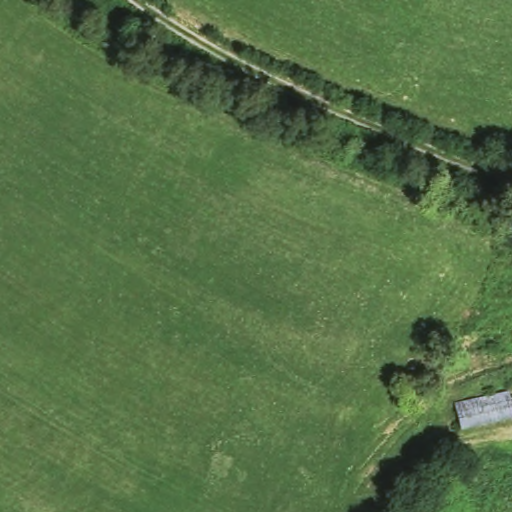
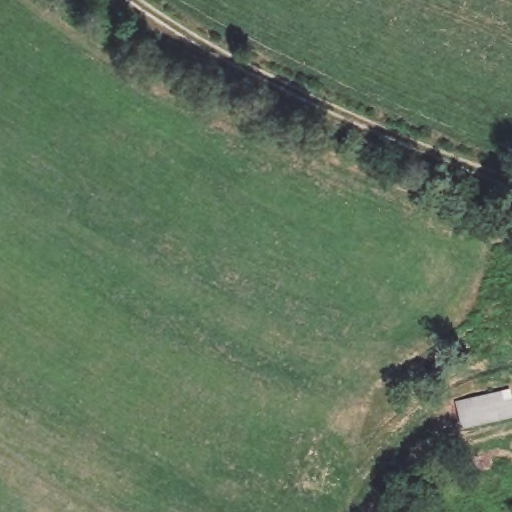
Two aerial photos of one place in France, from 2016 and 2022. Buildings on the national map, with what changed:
unchanged [(510,388),(512,395),(512,420),(459,427),(453,401),(510,388)]

